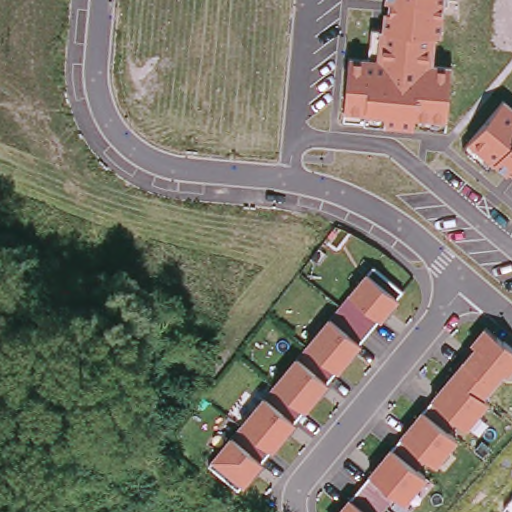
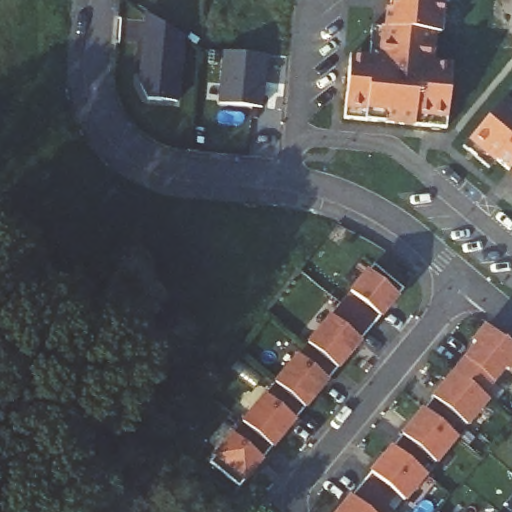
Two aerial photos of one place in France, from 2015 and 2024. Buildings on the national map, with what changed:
unchanged [(444,36),(437,36),(436,63),(454,63),(447,127),(345,115),(351,50),(369,52),(372,25),(383,26),(385,0),(447,0),(444,36)]
new [(182,37),(177,101),(147,99),(140,84),(144,42),(142,42),(146,13),(182,37)]
new [(266,55),(261,107),(219,103),(224,51),(266,55)]
unchanged [(512,102),(512,181),(492,163),(491,166),(464,141),(505,96),(512,102)]
unchanged [(406,288),(380,320),(379,318),(360,341),(363,344),(339,371),(335,369),(327,381),(330,384),(306,411),(302,408),(293,419),(297,422),(272,450),(270,449),(261,460),(264,463),(247,483),(242,480),(239,485),(208,459),(375,263),(406,288)]
unchanged [(509,372),(505,371),(487,395),(490,398),(467,427),(453,417),(445,427),(457,437),(435,466),(422,457),(414,465),(427,476),(404,503),(394,495),(380,512),(330,512),(473,343),(470,340),(485,323),(512,345),(512,369),(509,372)]
unchanged [(512,496),(512,512),(511,512),(504,506),(512,496)]

